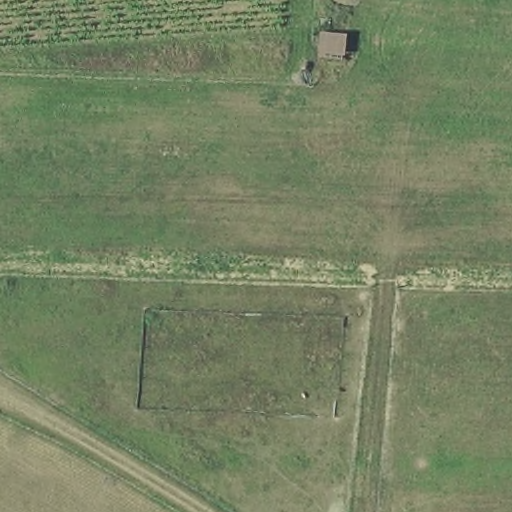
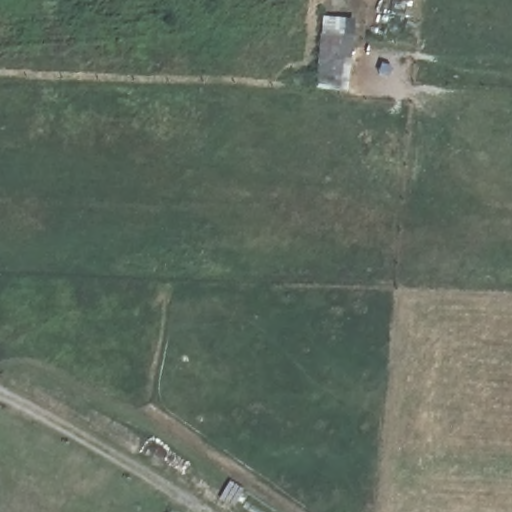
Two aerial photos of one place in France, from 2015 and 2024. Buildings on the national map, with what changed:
unchanged [(351,62),(345,62),(345,88),(324,89),(325,36),(350,37),(351,62)]

